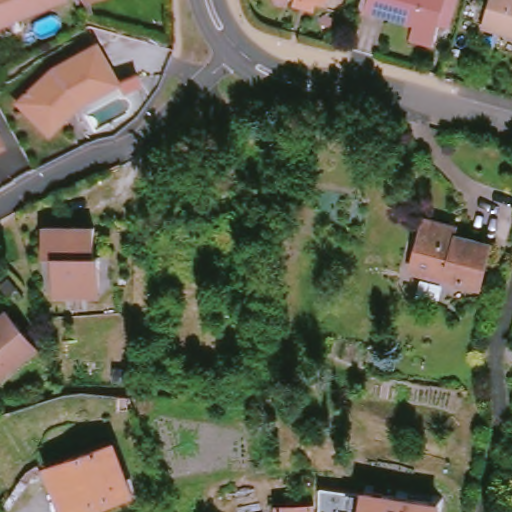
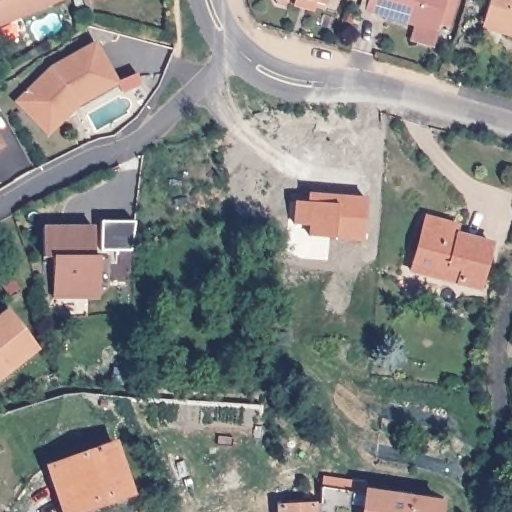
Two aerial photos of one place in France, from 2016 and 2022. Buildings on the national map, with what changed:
unchanged [(68,3),(0,31),(0,0),(67,0),(68,3)]
unchanged [(300,10),(302,2),(294,0),(332,0),(329,10),(320,7),(317,15),(300,10)]
unchanged [(438,27),(428,24),(422,46),(399,40),(403,25),(355,10),(358,0),(447,0),(438,27)]
unchanged [(507,38),(508,35),(487,29),(496,0),(512,0),(512,39),(507,38)]
unchanged [(20,104),(26,98),(54,69),(98,44),(120,84),(81,105),(52,136),(20,104)]
unchanged [(125,93),(120,84),(140,73),(145,82),(125,93)]
new [(296,200),(312,201),(312,193),(367,198),(362,239),(308,234),(310,224),(294,223),(296,200)]
unchanged [(410,271),(424,218),(459,227),(457,235),(492,245),(480,289),(410,271)]
unchanged [(54,297),(53,287),(53,257),(43,258),(43,227),(65,227),(65,231),(75,231),(75,227),(95,227),(95,256),(100,256),(100,287),(100,297),(54,297)]
unchanged [(0,318),(7,312),(37,349),(0,379),(0,318)]
unchanged [(94,512),(67,512),(54,474),(119,451),(128,480),(135,498),(117,504),(94,512)]
unchanged [(380,487),(378,493),(402,497),(402,490),(414,492),(413,499),(437,503),(438,495),(450,496),(448,512),(325,512),(325,486),(347,490),(370,494),(371,486),(380,487)]
unchanged [(320,505),(319,512),(282,512),(282,507),(320,505)]

